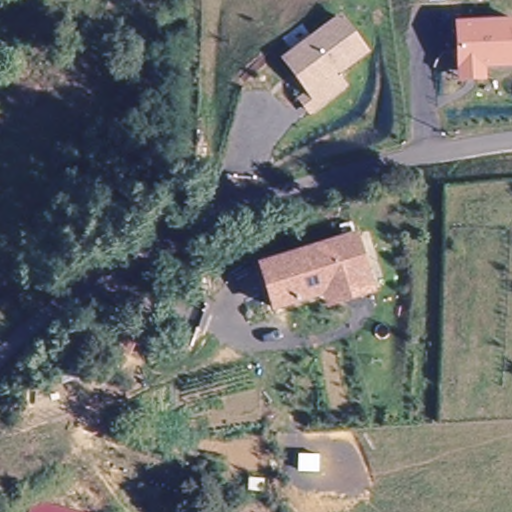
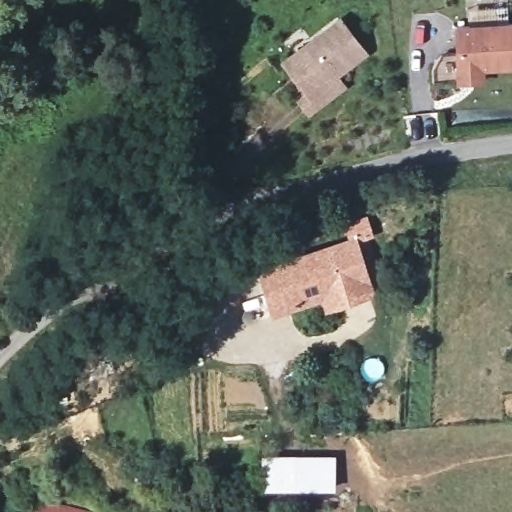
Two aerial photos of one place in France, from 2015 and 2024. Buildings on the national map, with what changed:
unchanged [(370,53),(342,76),(347,86),(309,116),(297,99),(306,93),(282,62),(341,15),(370,53)]
unchanged [(486,70),(486,84),(456,86),(455,24),(512,21),(512,69),(486,70)]
unchanged [(327,308),(323,296),(273,310),(261,265),(311,251),(353,238),(366,283),(370,295),(327,308)]
new [(258,453),(336,454),(335,487),(257,487),(258,453)]
unchanged [(28,512),(31,500),(79,512),(28,512)]

